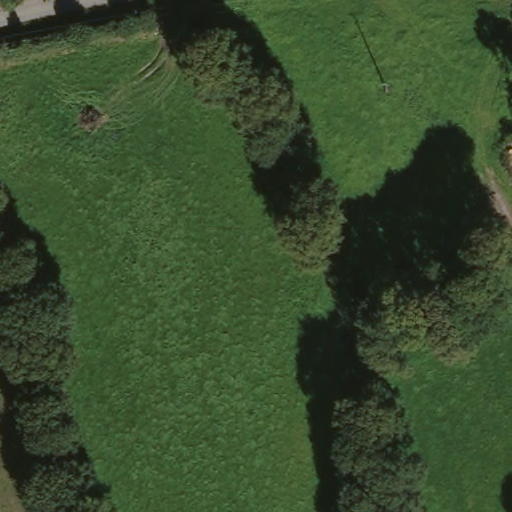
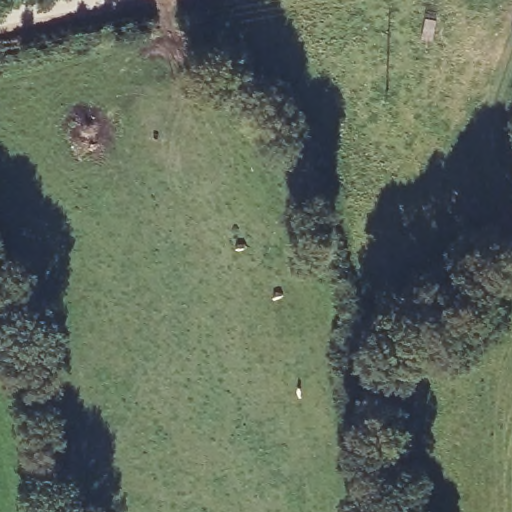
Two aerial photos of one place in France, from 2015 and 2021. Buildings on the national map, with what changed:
[]

